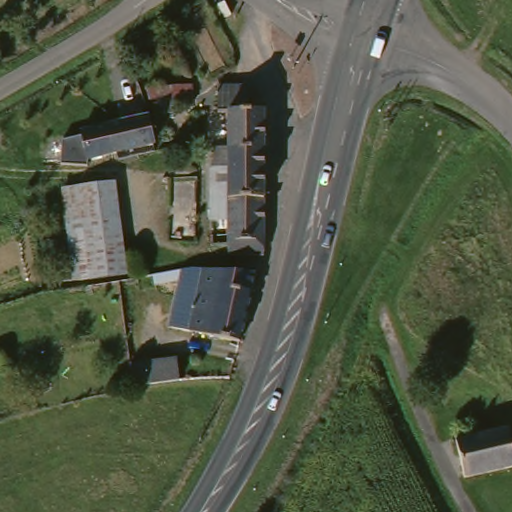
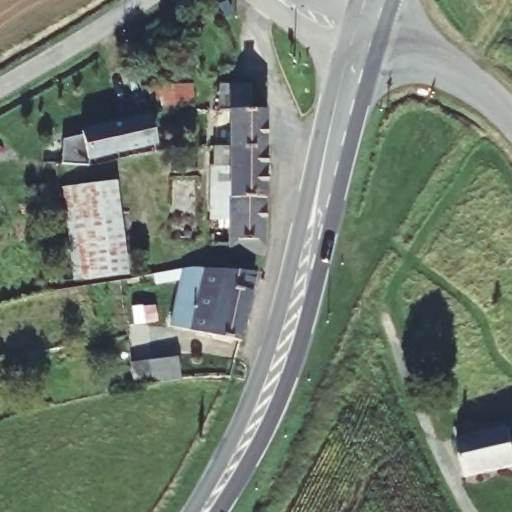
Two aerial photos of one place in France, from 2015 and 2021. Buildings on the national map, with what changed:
unchanged [(230,115),(220,114),(219,92),(248,91),(250,114),(264,113),(267,113),(266,150),(259,150),(229,152),(230,115)]
unchanged [(87,162),(79,135),(145,115),(153,143),(87,162)]
unchanged [(269,260),(237,262),(236,255),(226,256),(225,250),(216,250),(212,170),(216,169),(217,152),(229,152),(259,150),(266,150),(269,260)]
unchanged [(80,281),(66,218),(60,195),(108,185),(129,270),(80,281)]
unchanged [(256,288),(254,306),(257,307),(244,353),(173,340),(180,297),(159,302),(156,291),(186,285),(214,281),(256,288)]
unchanged [(133,370),(144,370),(174,366),(177,388),(158,390),(145,390),(136,391),(133,370)]
unchanged [(468,485),(453,446),(506,425),(512,442),(512,467),(491,475),(468,485)]

